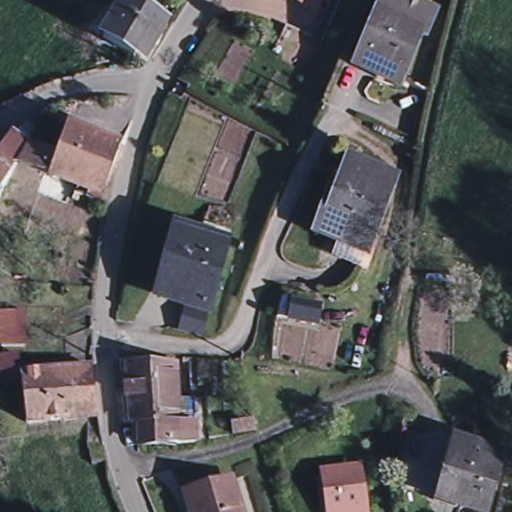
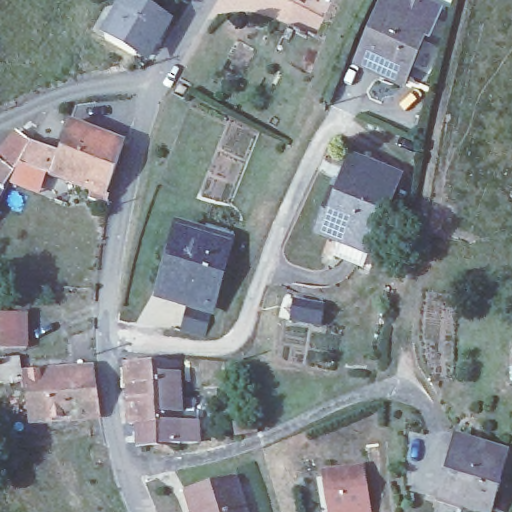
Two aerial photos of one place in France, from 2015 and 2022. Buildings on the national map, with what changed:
unchanged [(148,50),(109,28),(126,0),(137,0),(168,17),(148,50)]
unchanged [(423,44),(416,41),(376,24),(387,0),(390,0),(434,18),(423,44)]
unchanged [(376,24),(416,41),(398,82),(394,92),(355,75),(359,66),(376,24)]
unchanged [(19,127),(33,137),(29,143),(58,153),(68,123),(100,134),(82,186),(50,175),(19,163),(12,172),(0,189),(0,154),(19,127)]
unchanged [(123,142),(105,193),(82,186),(100,134),(123,142)]
unchanged [(371,259),(342,248),(346,236),(321,226),(329,203),(334,205),(353,156),(395,172),(374,227),(381,230),(371,259)]
unchanged [(1,194),(0,197),(0,193),(1,194)]
unchanged [(206,325),(182,320),(188,293),(161,286),(178,217),(228,230),(211,298),(212,299),(206,325)]
unchanged [(21,311),(23,341),(0,342),(0,312),(21,311)]
unchanged [(15,351),(18,363),(18,370),(62,365),(68,412),(23,418),(0,421),(0,353),(15,351)]
unchanged [(131,422),(123,422),(121,361),(171,360),(173,420),(189,420),(191,440),(166,443),(132,443),(131,422)]
unchanged [(89,361),(94,409),(68,412),(62,365),(89,361)]
unchanged [(438,495),(451,450),(454,437),(499,450),(496,462),(484,508),(438,495)]
unchanged [(331,511),(324,474),(358,469),(364,506),(365,512),(331,512),(331,511)]
unchanged [(236,478),(246,512),(196,512),(190,491),(236,478)]

